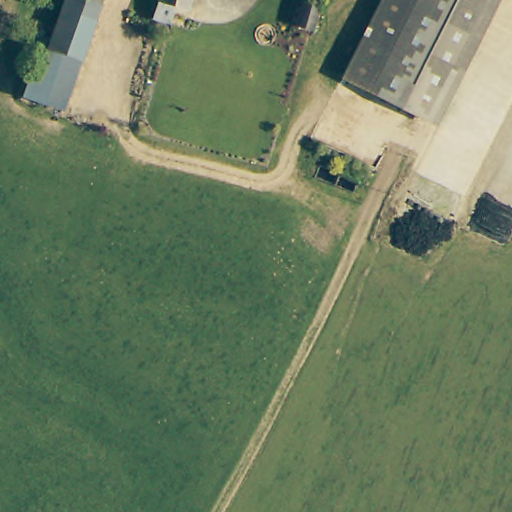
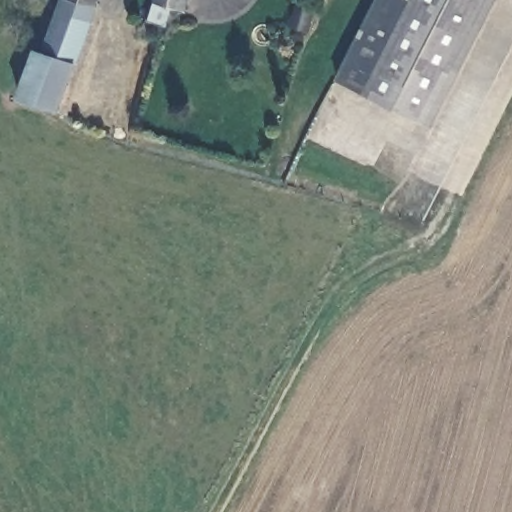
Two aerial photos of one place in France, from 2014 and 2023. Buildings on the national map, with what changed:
unchanged [(70,62),(37,48),(38,47),(59,0),(83,0),(86,1),(95,5),(70,62)]
unchanged [(83,0),(88,0),(86,1),(83,0)]
unchanged [(182,27),(155,21),(161,0),(191,0),(187,12),(182,27)]
unchanged [(281,0),(303,0),(293,32),(275,27),(281,0)]
unchanged [(342,77),(379,0),(477,0),(422,116),(342,77)]
unchanged [(12,91),(24,61),(31,43),(38,47),(37,48),(70,62),(67,67),(50,107),(12,91)]

